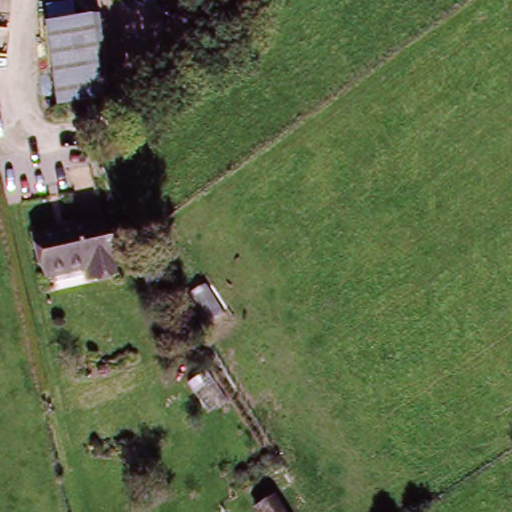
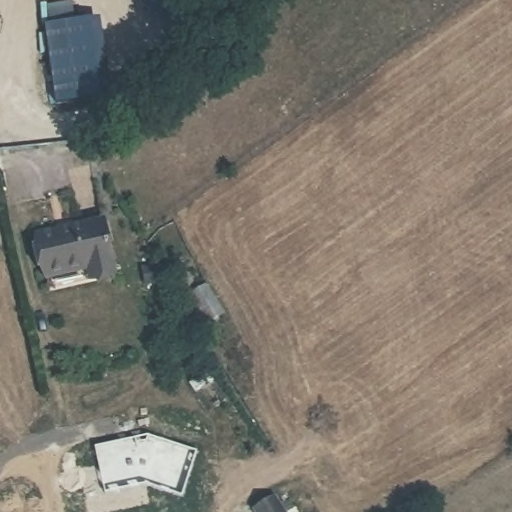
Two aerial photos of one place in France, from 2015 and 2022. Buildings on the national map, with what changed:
unchanged [(73,98),(58,20),(97,12),(113,90),(73,98)]
unchanged [(33,240),(101,229),(110,281),(87,285),(85,275),(40,282),(33,240)]
new [(150,434),(197,450),(182,493),(147,480),(104,487),(95,446),(150,434)]
unchanged [(282,491),(283,490),(296,512),(271,512),(264,501),(279,492),(282,491)]
unchanged [(271,512),(245,512),(264,501),(271,512)]

